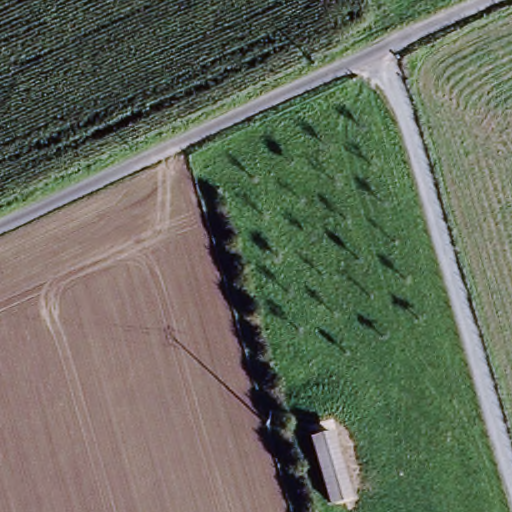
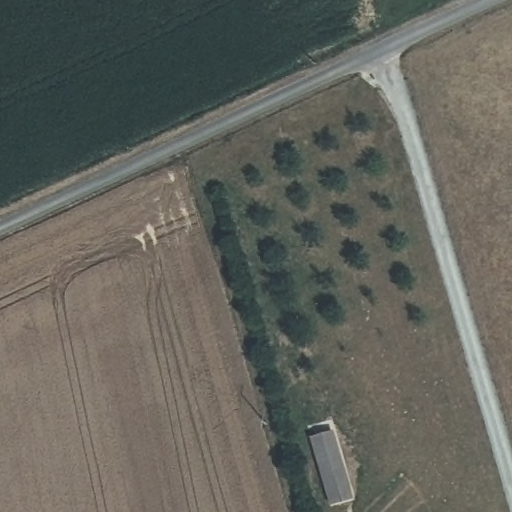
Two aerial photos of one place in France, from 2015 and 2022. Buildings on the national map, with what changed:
[]

